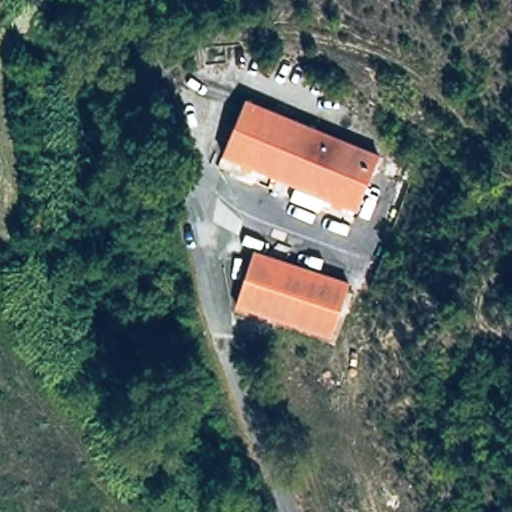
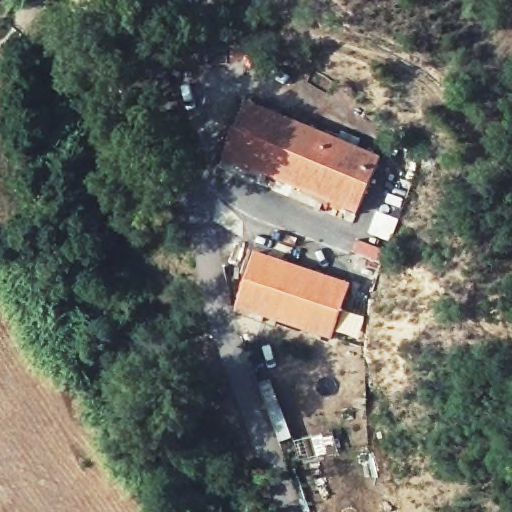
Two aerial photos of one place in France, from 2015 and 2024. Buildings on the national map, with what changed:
unchanged [(362,213),(224,151),(247,96),(384,158),(362,213)]
unchanged [(327,340),(236,298),(257,247),(349,289),(327,340)]

